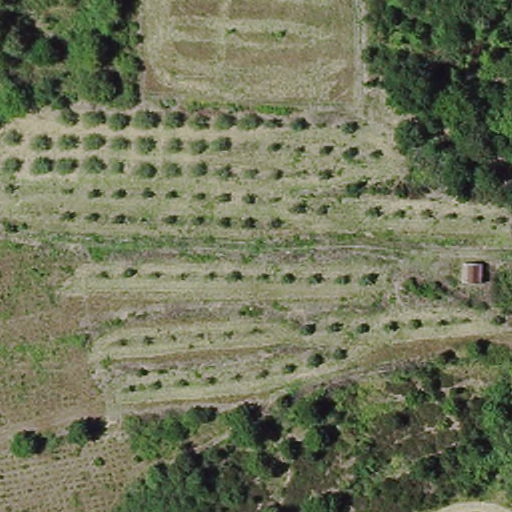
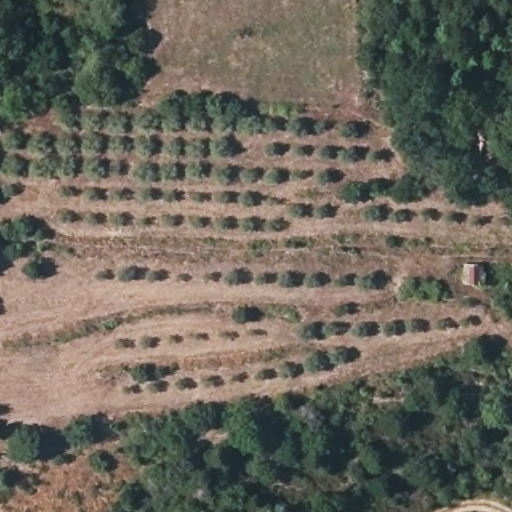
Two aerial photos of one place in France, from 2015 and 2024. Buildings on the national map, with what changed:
unchanged [(15,109),(0,111),(0,92),(16,90),(15,109)]
unchanged [(465,288),(465,268),(484,270),(485,290),(465,288)]

